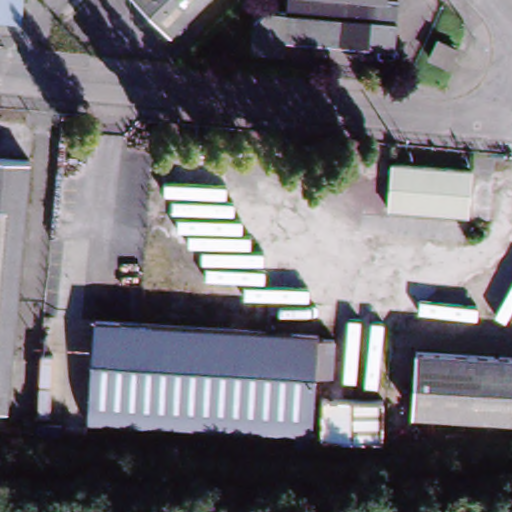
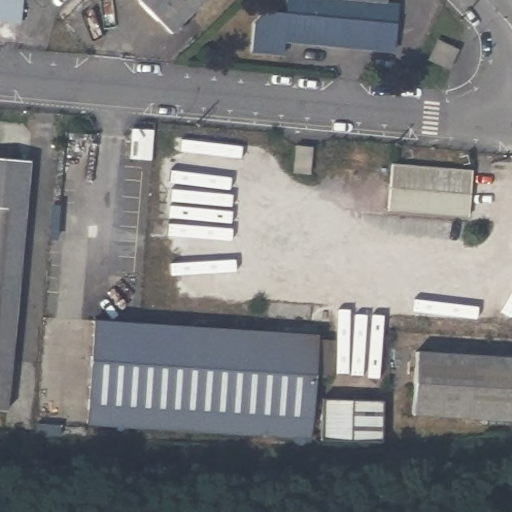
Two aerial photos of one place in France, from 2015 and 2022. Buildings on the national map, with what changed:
unchanged [(41,4),(39,23),(0,20),(0,0),(29,0),(28,2),(41,4)]
unchanged [(130,0),(205,0),(168,37),(130,0)]
unchanged [(261,24),(274,11),(294,14),(294,0),(393,0),(393,3),(406,4),(402,51),(292,40),(291,54),(259,51),(261,24)]
unchanged [(459,51),(451,69),(432,60),(441,43),(459,51)]
unchanged [(320,149),(319,174),(301,172),(304,146),(320,149)]
unchanged [(0,394),(0,164),(23,166),(0,394)]
unchanged [(354,164),(393,167),(393,180),(353,176),(354,164)]
unchanged [(474,175),(472,217),(392,210),(394,167),(474,175)]
unchanged [(301,438),(81,426),(90,320),(314,333),(313,338),(328,339),(322,387),(308,386),(303,424),(302,435),(301,438)]
unchanged [(408,421),(413,362),(512,367),(512,426),(408,421)]
unchanged [(376,396),(374,437),(313,436),(316,395),(376,396)]

